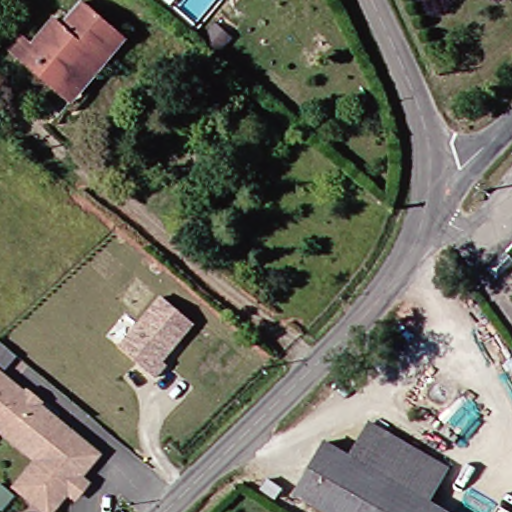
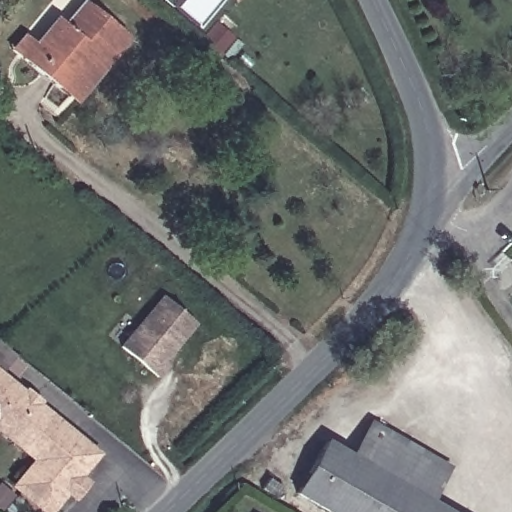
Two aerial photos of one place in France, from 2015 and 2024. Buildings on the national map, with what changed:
unchanged [(127,35),(106,60),(112,69),(84,105),(30,60),(61,25),(72,30),(92,4),(127,35)]
unchanged [(196,322),(162,358),(167,362),(157,375),(121,345),(165,295),(196,322)]
unchanged [(2,417),(0,417),(0,372),(22,390),(30,388),(38,397),(37,402),(57,420),(37,445),(2,417)]
unchanged [(20,490),(14,485),(36,459),(7,433),(0,428),(0,417),(2,417),(37,445),(57,420),(70,431),(20,490)]
unchanged [(378,422),(457,473),(438,498),(361,449),(378,422)]
unchanged [(74,494),(67,490),(47,512),(20,490),(70,431),(99,452),(80,473),(87,481),(74,494)]
unchanged [(311,487),(342,439),(361,449),(438,498),(461,512),(351,512),(311,487)]

